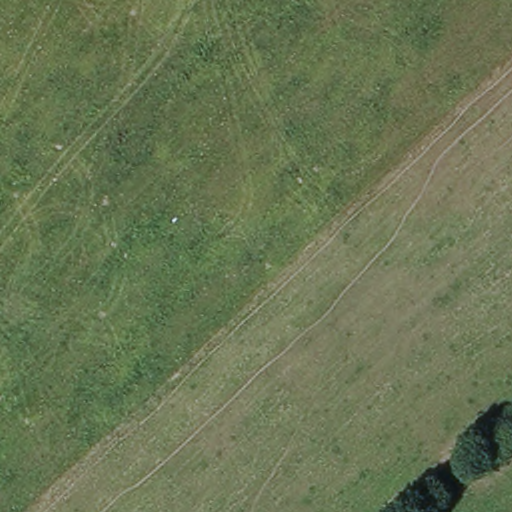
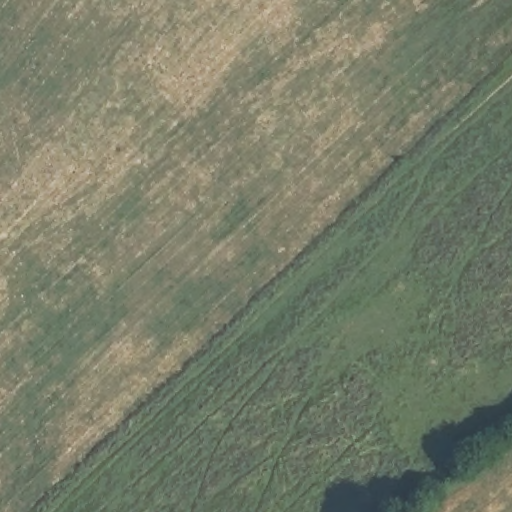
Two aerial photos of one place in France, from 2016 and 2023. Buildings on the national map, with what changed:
[]

